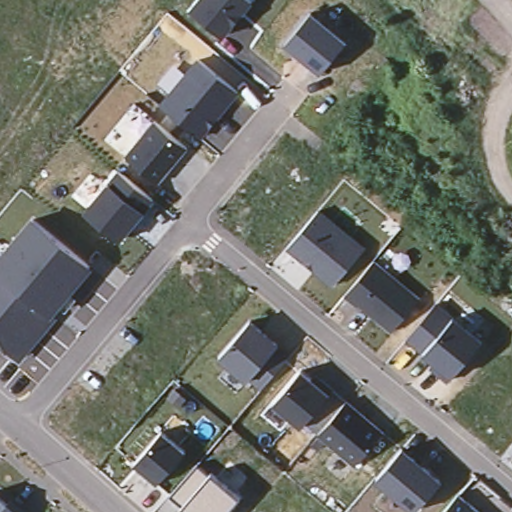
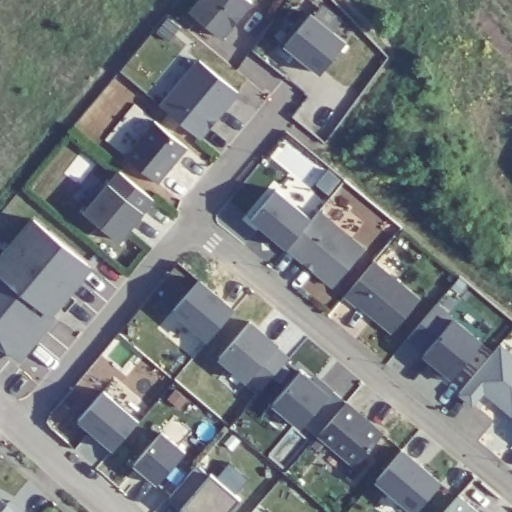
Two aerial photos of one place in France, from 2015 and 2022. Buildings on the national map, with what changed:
unchanged [(255,4),(222,40),(188,10),(198,0),(250,0),(255,4)]
unchanged [(347,41),(320,77),(283,46),(311,10),(347,41)]
unchanged [(240,92),(202,140),(160,104),(170,92),(158,82),(174,64),(185,72),(198,57),(240,92)]
unchanged [(190,149),(160,186),(125,157),(155,120),(190,149)]
unchanged [(156,201),(122,244),(83,212),(120,171),(156,201)]
new [(286,248),(250,219),(275,187),(312,219),(286,248)]
unchanged [(367,248),(332,287),(286,248),(320,209),(367,248)]
unchanged [(18,361),(0,346),(0,243),(5,248),(35,216),(95,270),(18,361)]
unchanged [(423,300),(394,335),(347,297),(375,259),(423,300)]
new [(173,311),(199,279),(234,307),(206,340),(173,311)]
unchanged [(483,341),(451,379),(404,341),(436,301),(483,341)]
unchanged [(292,357),(259,393),(218,361),(252,321),(292,357)]
new [(460,393),(500,346),(512,355),(512,418),(483,394),(473,406),(460,393)]
unchanged [(331,396),(301,431),(271,405),(302,369),(331,396)]
new [(79,420),(103,392),(137,420),(112,450),(79,420)]
unchanged [(385,435),(355,467),(315,435),(347,401),(385,435)]
unchanged [(188,452),(158,486),(132,464),(162,430),(188,452)]
unchanged [(416,512),(409,512),(375,482),(402,447),(442,482),(416,512)]
unchanged [(210,472),(238,498),(227,512),(186,512),(181,507),(168,497),(197,464),(208,476),(210,472)]
unchanged [(21,506),(27,512),(0,512),(0,496),(15,511),(21,506)]
unchanged [(447,512),(462,496),(481,512),(447,512)]

